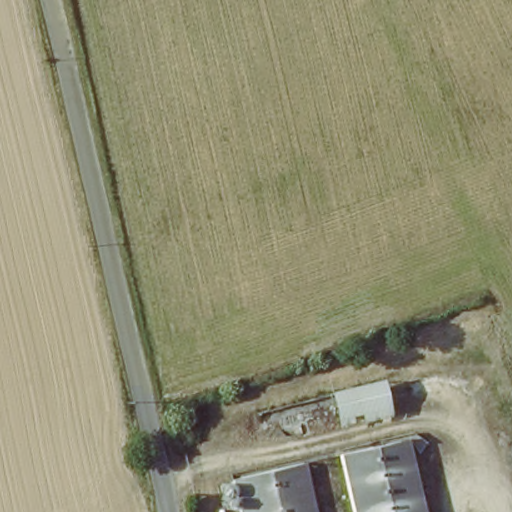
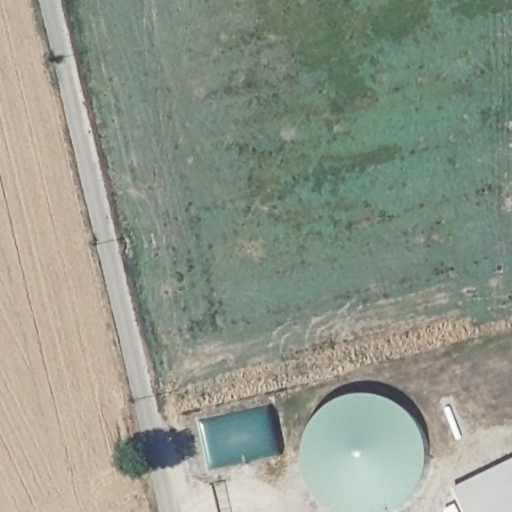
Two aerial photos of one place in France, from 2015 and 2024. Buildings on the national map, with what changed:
demolished [(340,451),(401,437),(420,512),(355,512),(340,451)]
new [(512,512),(465,512),(455,492),(512,464),(512,512)]
demolished [(231,482),(300,466),(311,512),(238,512),(231,482)]

